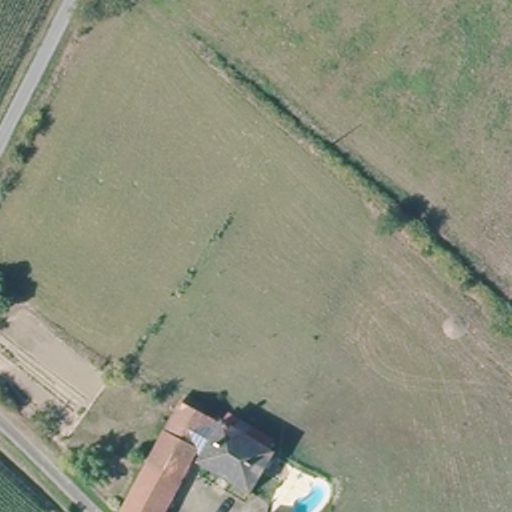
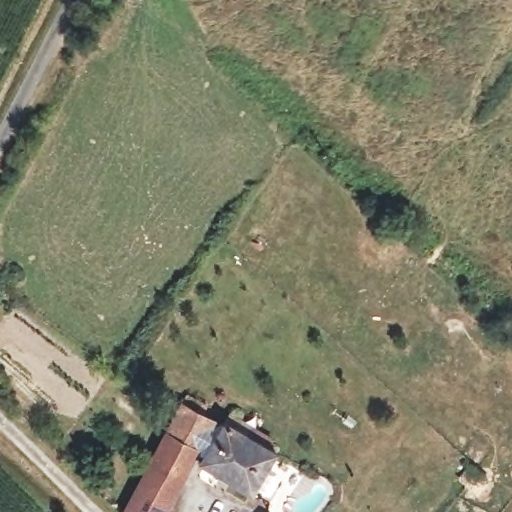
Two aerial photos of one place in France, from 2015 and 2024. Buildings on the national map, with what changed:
unchanged [(175,406),(182,393),(199,402),(178,440),(193,450),(161,512),(121,512),(175,406)]
unchanged [(275,447),(249,491),(198,464),(224,415),(235,417),(233,423),(268,444),(275,447)]
unchanged [(265,510),(268,512),(263,512),(265,510)]

